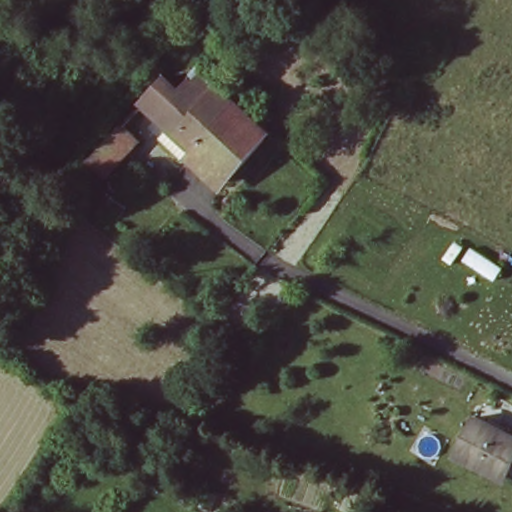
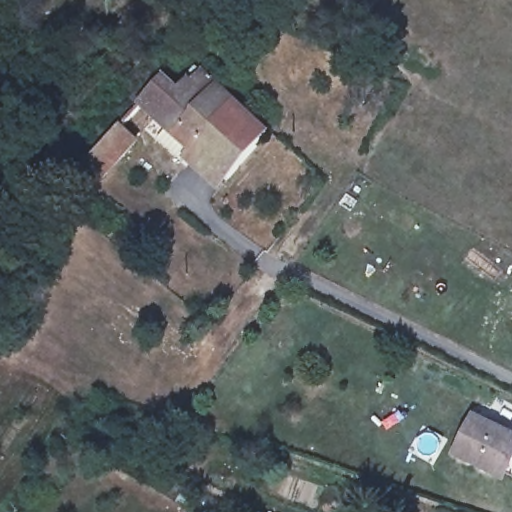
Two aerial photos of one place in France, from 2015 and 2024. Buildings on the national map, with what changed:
unchanged [(226,179),(140,105),(163,79),(178,92),(188,80),(193,84),(200,77),(270,136),(226,179)]
unchanged [(81,169),(113,135),(130,150),(98,185),(81,169)]
unchanged [(472,416),(512,436),(512,479),(501,472),(498,478),(451,453),(472,416)]

